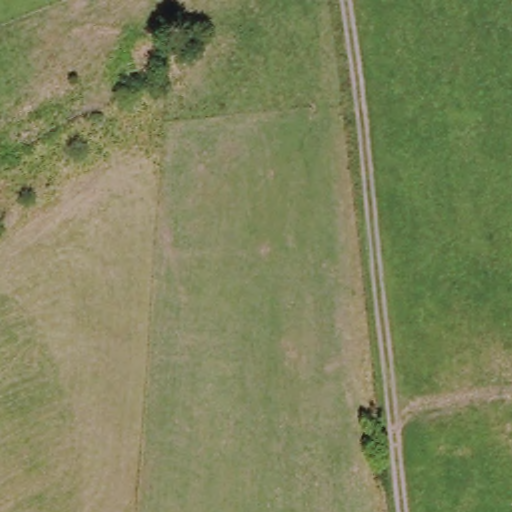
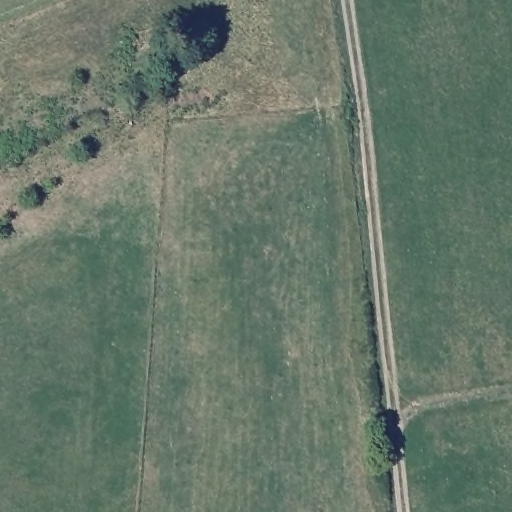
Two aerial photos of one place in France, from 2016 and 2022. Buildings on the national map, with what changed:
[]

